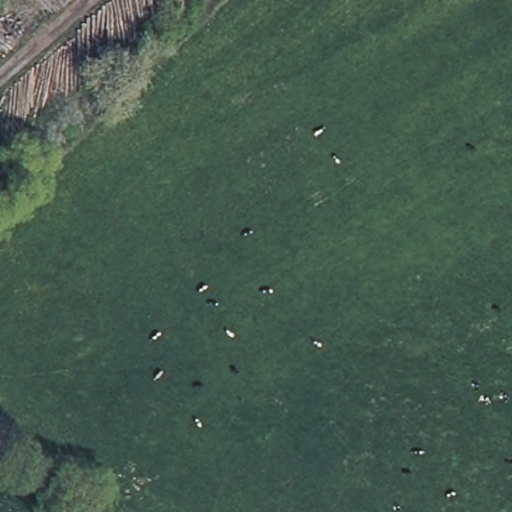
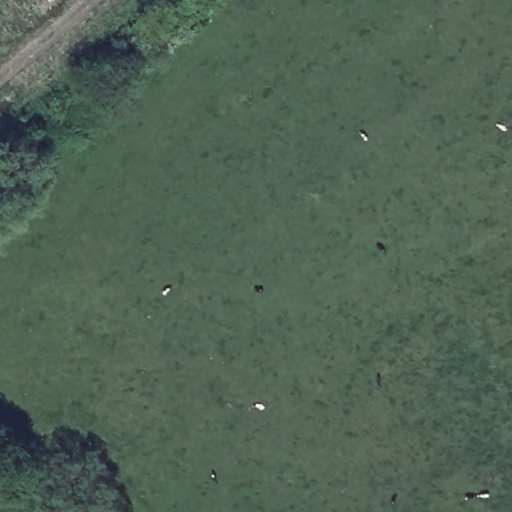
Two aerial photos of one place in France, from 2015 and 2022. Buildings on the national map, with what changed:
[]

